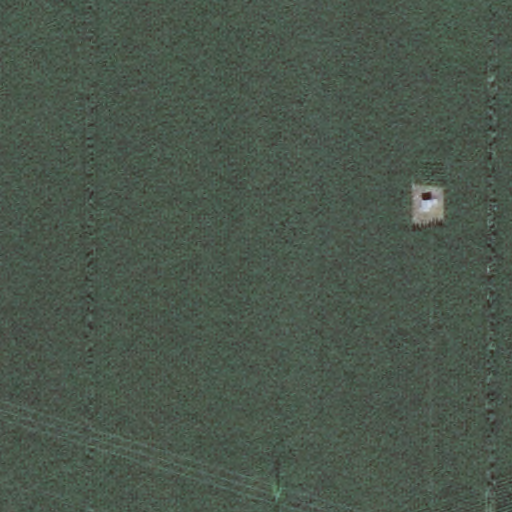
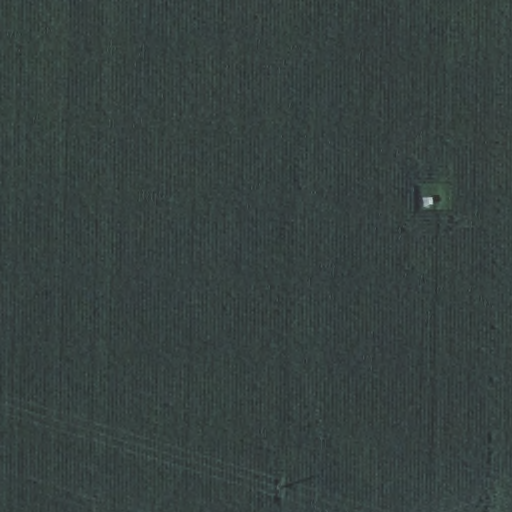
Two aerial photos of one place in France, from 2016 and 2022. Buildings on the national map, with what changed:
unchanged [(437,187),(436,209),(413,206),(414,188),(437,187)]

